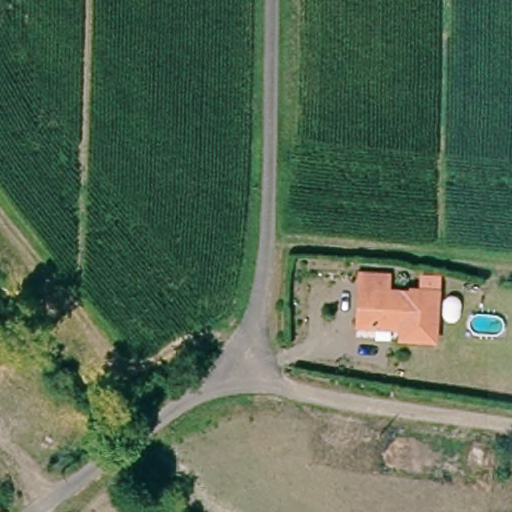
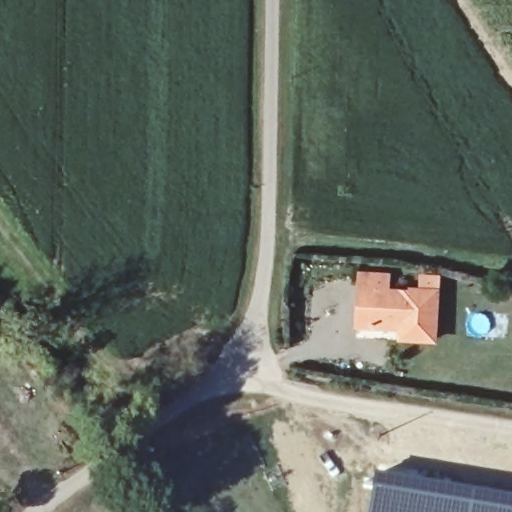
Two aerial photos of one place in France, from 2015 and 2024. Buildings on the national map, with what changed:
unchanged [(355,307),(361,307),(362,291),(356,291),(357,272),(373,273),(390,275),(389,291),(410,292),(410,285),(426,287),(439,288),(435,343),(420,342),(396,339),(397,329),(370,327),(355,325),(355,307)]
new [(480,499),(512,505),(512,512),(367,512),(372,482),(480,499)]
new [(512,495),(512,505),(480,499),(480,490),(512,495)]

